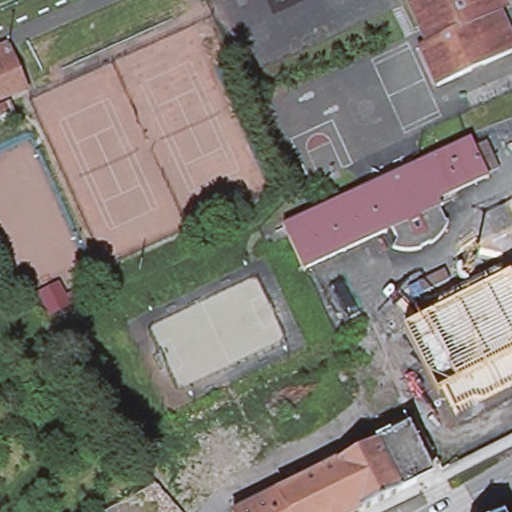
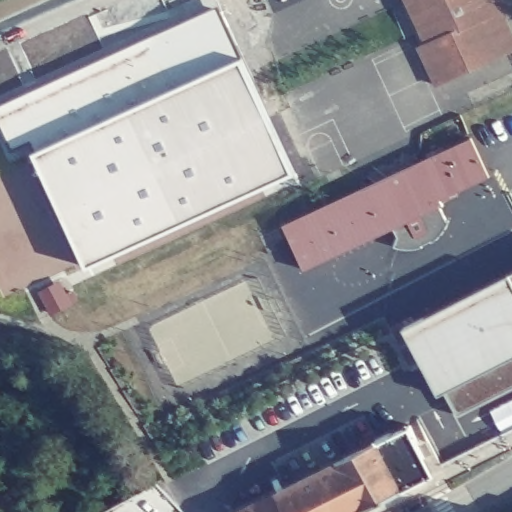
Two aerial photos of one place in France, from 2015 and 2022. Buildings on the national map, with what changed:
unchanged [(512,50),(433,85),(415,45),(422,41),(404,0),(490,0),(512,50)]
new [(218,8),(238,59),(293,177),(83,270),(28,155),(35,153),(30,141),(10,149),(0,126),(0,104),(218,8)]
unchanged [(5,48),(9,57),(0,61),(0,50),(5,48)]
unchanged [(25,92),(0,103),(0,61),(9,57),(25,92)]
unchanged [(464,142),(481,182),(432,203),(414,164),(464,142)]
unchanged [(414,164),(432,203),(434,209),(385,231),(379,234),(358,189),(414,164)]
unchanged [(379,234),(296,270),(276,225),(358,189),(379,234)]
unchanged [(438,215),(434,217),(439,228),(434,238),(429,244),(423,249),(422,248),(413,252),(413,254),(405,255),(397,255),(388,253),(391,244),(385,231),(434,209),(438,215)]
new [(439,393),(406,327),(509,275),(512,273),(512,386),(457,413),(446,390),(439,393)]
demolished [(512,400),(449,429),(438,403),(512,369),(512,400)]
unchanged [(376,440),(390,432),(392,435),(409,426),(419,445),(418,446),(432,472),(414,481),(416,483),(401,490),(377,443),(376,440)]
demolished [(183,501),(166,482),(198,455),(230,433),(248,468),(223,483),(193,512),(183,501)]
unchanged [(377,443),(401,490),(361,510),(337,462),(377,443)]
unchanged [(358,512),(286,512),(276,492),(337,462),(361,510),(358,512)]
unchanged [(286,512),(236,512),(276,492),(286,512)]

